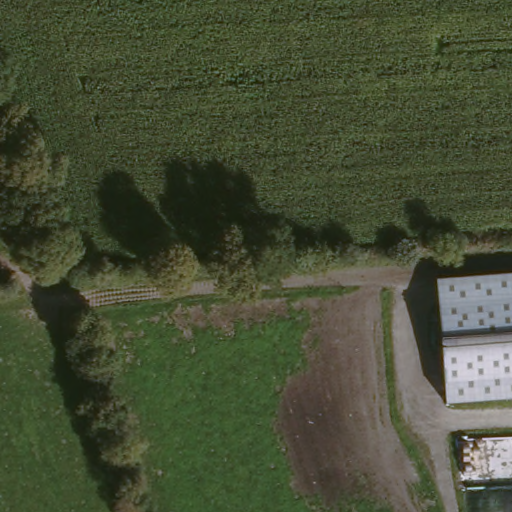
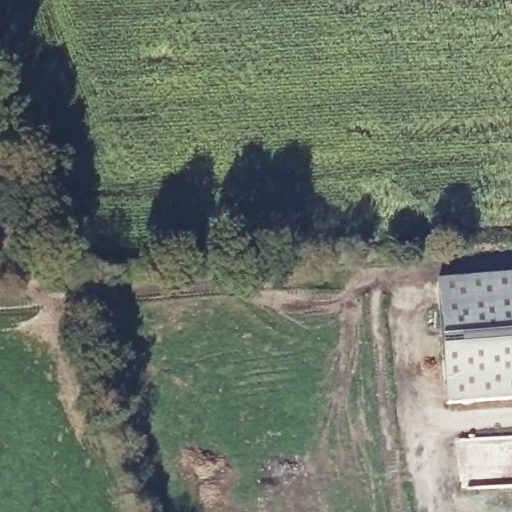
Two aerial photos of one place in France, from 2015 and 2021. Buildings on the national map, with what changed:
unchanged [(445,405),(437,280),(512,275),(512,401),(445,405)]

